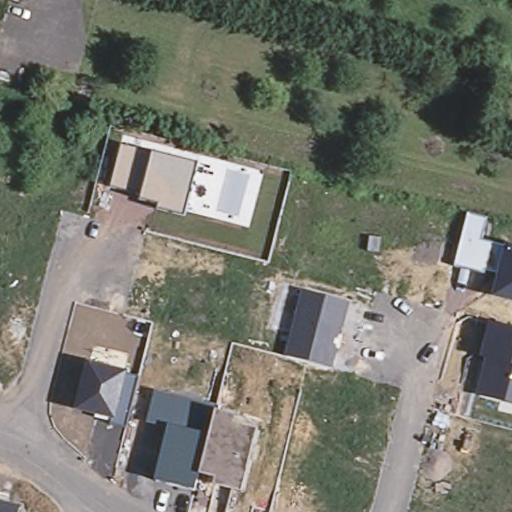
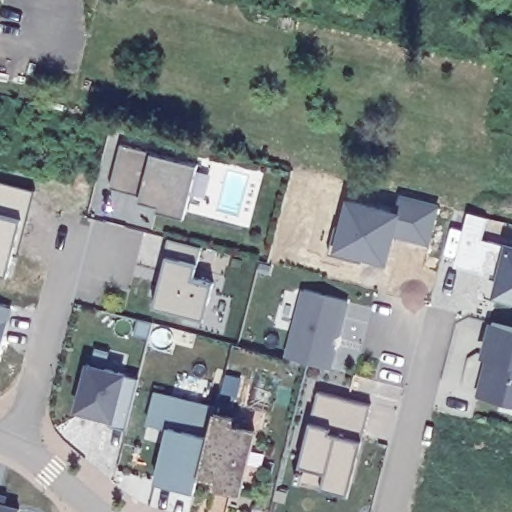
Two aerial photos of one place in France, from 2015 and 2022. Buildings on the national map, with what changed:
unchanged [(157,207),(160,202),(141,198),(143,191),(112,184),(122,145),(153,152),(197,163),(185,214),(157,207)]
new [(17,182),(35,187),(19,252),(12,251),(6,276),(0,274),(0,178),(17,182)]
new [(397,215),(402,197),(437,206),(429,249),(392,239),(385,269),(331,255),(344,201),(397,215)]
unchanged [(497,271),(485,267),(484,272),(454,265),(467,213),(487,219),(481,240),(506,245),(506,243),(512,244),(512,300),(491,294),(497,271)]
new [(200,247),(196,262),(192,278),(212,283),(204,317),(155,304),(166,255),(169,239),(200,247)]
unchanged [(285,353),(301,290),(350,301),(342,332),(335,336),(333,343),(338,350),(332,368),(285,353)]
new [(11,311),(0,353),(0,308),(11,311)]
unchanged [(485,355),(479,355),(487,322),(512,328),(512,403),(475,391),(485,355)]
unchanged [(111,422),(113,416),(77,407),(89,361),(127,371),(126,375),(137,377),(125,426),(111,422)]
unchanged [(212,485),(214,477),(198,473),(193,491),(155,479),(168,425),(147,421),(155,390),(217,405),(216,412),(236,416),(233,423),(257,430),(241,492),(212,485)]
new [(369,405),(348,495),(295,482),(318,393),(369,405)]
unchanged [(19,512),(0,512),(0,502),(20,506),(19,512)]

